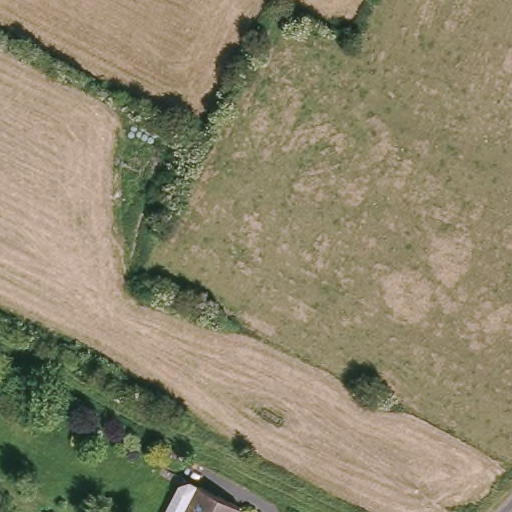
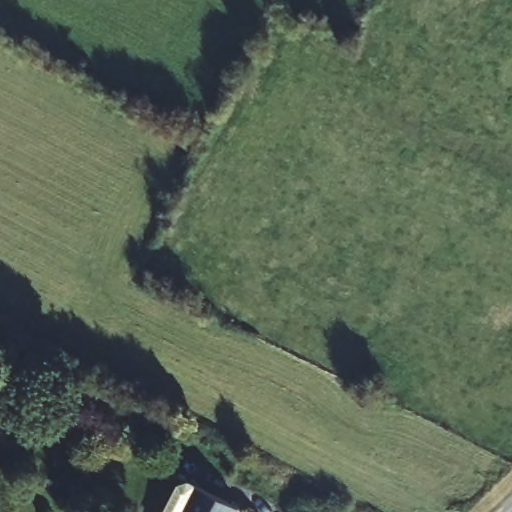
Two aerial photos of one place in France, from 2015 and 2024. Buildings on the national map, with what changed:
unchanged [(188,489),(198,487),(208,492),(247,512),(176,512),(188,489)]

